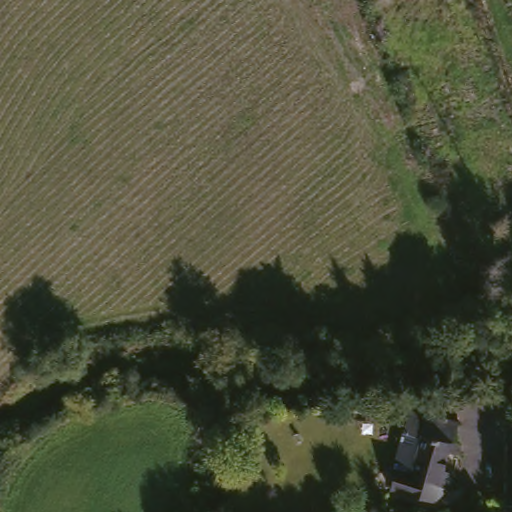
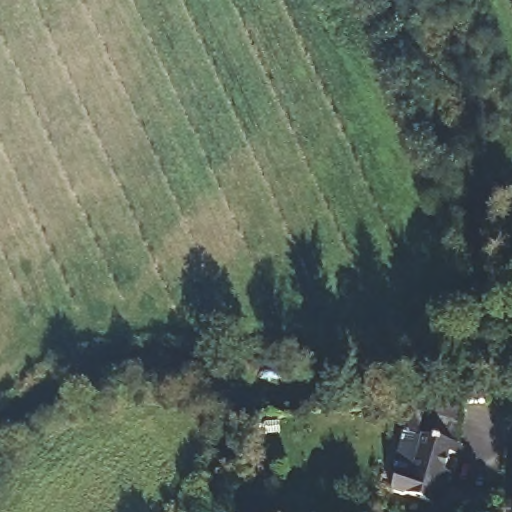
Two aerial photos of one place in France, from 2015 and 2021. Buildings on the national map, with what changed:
unchanged [(464,424),(460,444),(467,446),(465,456),(455,455),(450,472),(460,475),(454,491),(438,505),(395,490),(401,472),(416,477),(426,440),(408,435),(415,412),(464,424)]

